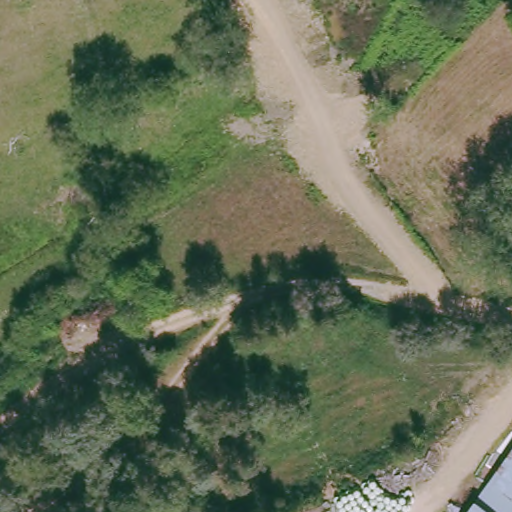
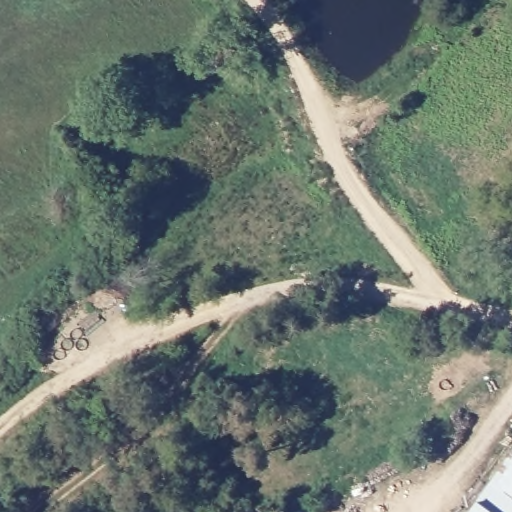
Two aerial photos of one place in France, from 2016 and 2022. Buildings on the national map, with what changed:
unchanged [(512,512),(467,512),(512,448),(512,512)]

